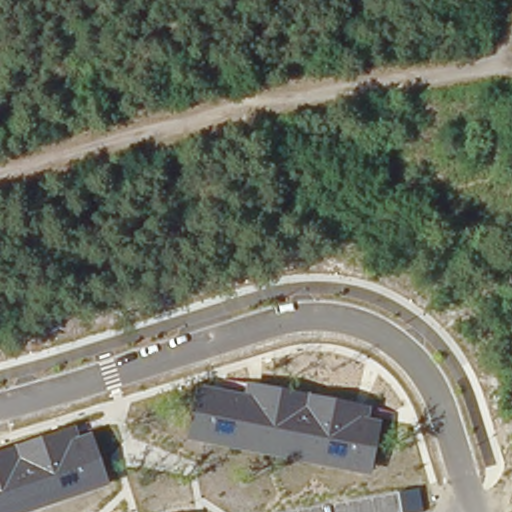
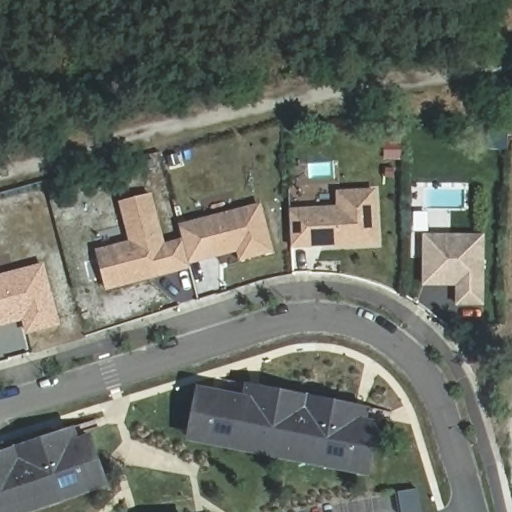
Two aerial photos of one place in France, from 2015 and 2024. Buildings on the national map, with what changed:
new [(292,245),(291,209),(340,206),(340,191),(376,189),(378,240),(318,244),(310,244),(292,245)]
new [(108,286),(98,250),(132,240),(122,201),(152,193),(164,244),(184,239),(190,261),(191,265),(164,272),(152,275),(108,286)]
new [(190,261),(184,239),(181,225),(261,204),(272,250),(242,258),(240,249),(214,255),(206,257),(190,261)]
new [(425,285),(426,235),(485,236),(485,285),(485,305),(458,305),(459,285),(425,285)]
new [(43,265),(59,323),(29,331),(25,317),(0,322),(0,276),(43,265)]
unchanged [(247,384),(370,407),(368,419),(381,421),(371,476),(187,440),(197,386),(244,395),(247,384)]
unchanged [(76,425),(80,437),(91,434),(110,486),(35,512),(0,512),(0,452),(76,425)]
new [(420,512),(401,512),(397,492),(417,490),(420,512)]

